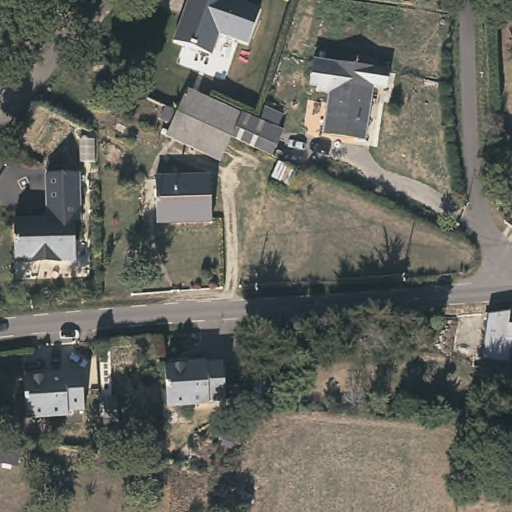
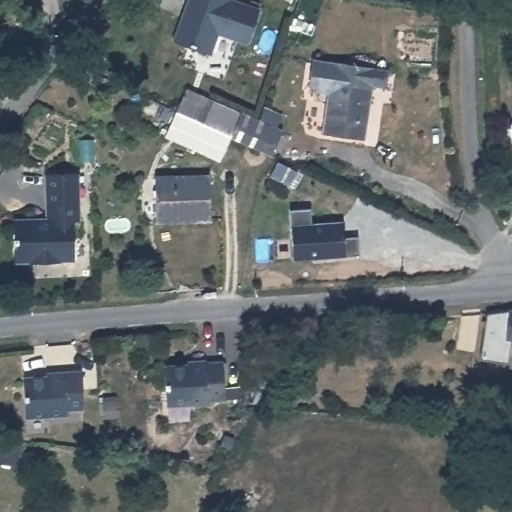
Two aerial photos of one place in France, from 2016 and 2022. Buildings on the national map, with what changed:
unchanged [(260,8),(248,43),(219,34),(213,54),(174,41),(188,0),(232,0),(260,8)]
unchanged [(353,139),(326,135),(331,93),(319,91),(321,77),(313,76),(316,58),(336,61),(380,65),(392,68),(390,87),(377,85),(372,124),(369,142),(353,139)]
unchanged [(261,104),(282,114),(277,126),(285,129),(273,157),(231,141),(223,160),(167,134),(179,110),(190,87),(211,97),(244,112),(256,117),(261,104)]
unchanged [(303,163),(294,180),(272,169),(280,153),(303,163)]
unchanged [(213,213),(157,214),(156,171),(212,171),(213,213)]
unchanged [(79,222),(73,222),(72,262),(12,260),(13,218),(46,219),(47,205),(47,174),(80,175),(79,205),(79,222)]
new [(359,254),(343,255),(293,255),(293,207),(310,206),(310,219),(341,220),(341,234),(359,235),(359,254)]
unchanged [(485,311),(511,308),(512,309),(512,339),(483,335),(485,311)]
unchanged [(184,360),(184,357),(202,358),(202,361),(212,360),(211,398),(195,398),(195,400),(160,400),(161,360),(184,360)]
unchanged [(65,410),(65,415),(23,415),(24,375),(48,375),(48,372),(82,373),(82,411),(65,410)]
unchanged [(280,386),(279,401),(267,400),(269,386),(280,386)]

